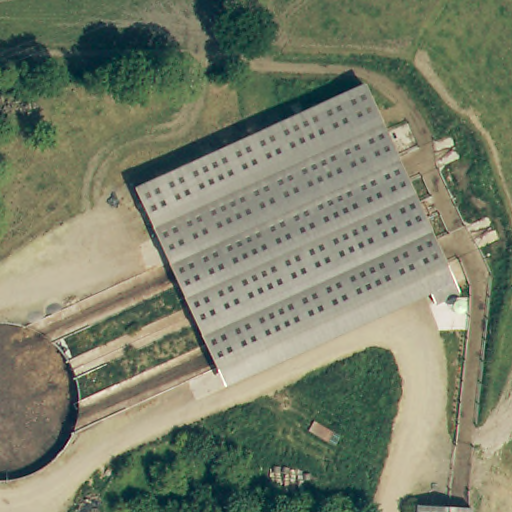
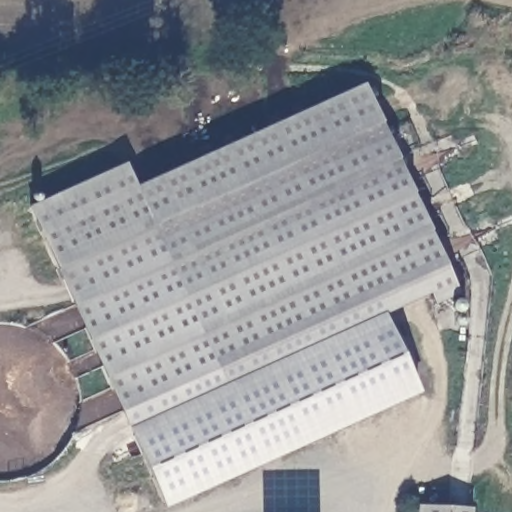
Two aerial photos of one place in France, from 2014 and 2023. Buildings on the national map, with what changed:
unchanged [(435,306),(430,293),(225,387),(132,187),(364,84),(460,293),(435,306)]
new [(130,429),(30,207),(126,164),(135,186),(132,187),(225,387),(385,314),(421,392),(165,508),(130,429)]
unchanged [(472,509),(472,512),(418,512),(418,508),(472,509)]

